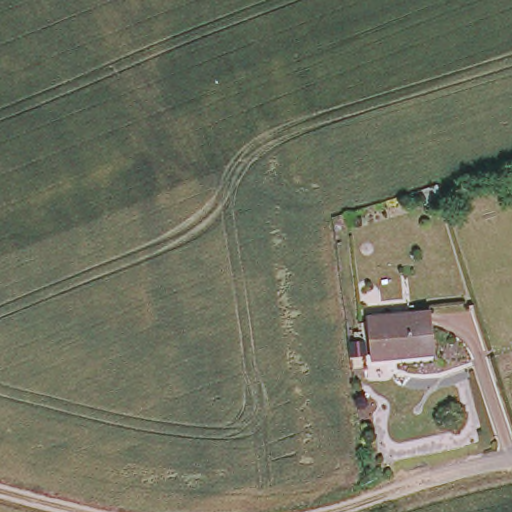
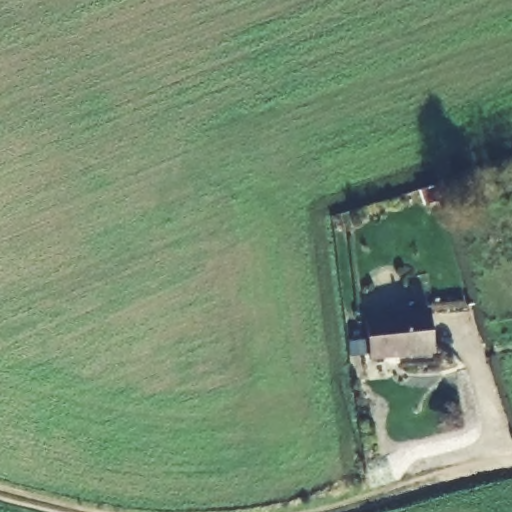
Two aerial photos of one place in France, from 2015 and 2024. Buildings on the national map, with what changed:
unchanged [(433,354),(371,360),(366,320),(427,313),(433,354)]

